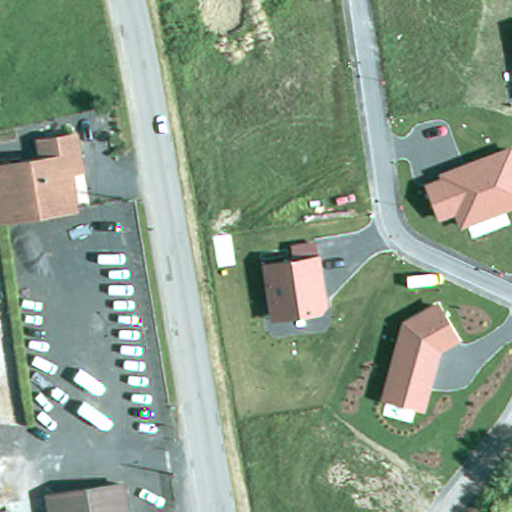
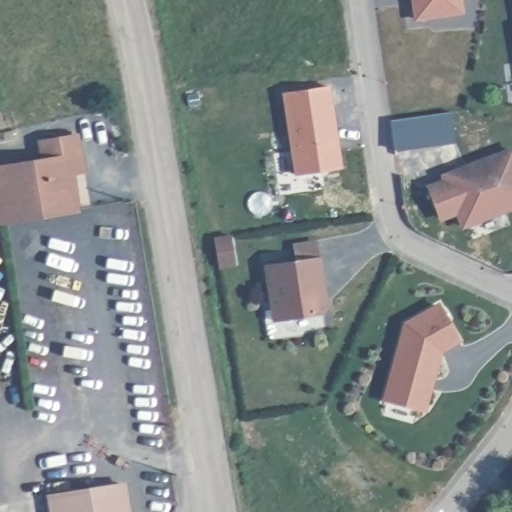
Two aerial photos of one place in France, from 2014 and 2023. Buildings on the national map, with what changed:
new [(409,0),(462,0),(464,14),(413,21),(409,0)]
new [(281,92),(330,84),(342,168),(294,176),(281,92)]
unchanged [(512,210),(462,229),(457,215),(439,222),(426,185),(441,179),(438,172),(512,146),(512,210)]
unchanged [(61,157),(73,154),(78,172),(64,174),(70,211),(0,222),(0,166),(61,157)]
unchanged [(294,260),(291,245),(319,240),(329,305),(323,313),(270,320),(263,267),(294,260)]
unchanged [(459,340),(441,351),(425,412),(381,400),(402,321),(439,302),(459,340)]
unchanged [(115,485),(120,512),(47,512),(44,496),(115,485)]

